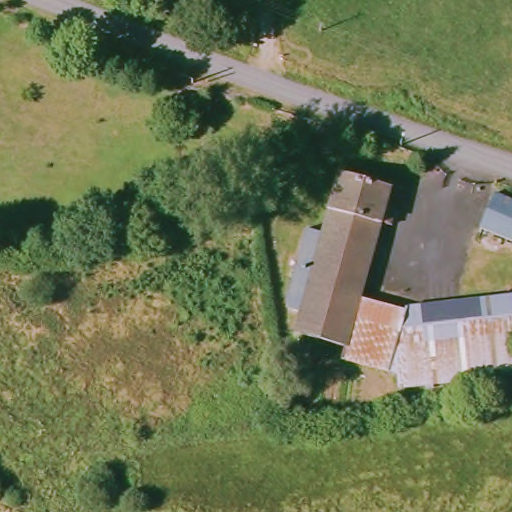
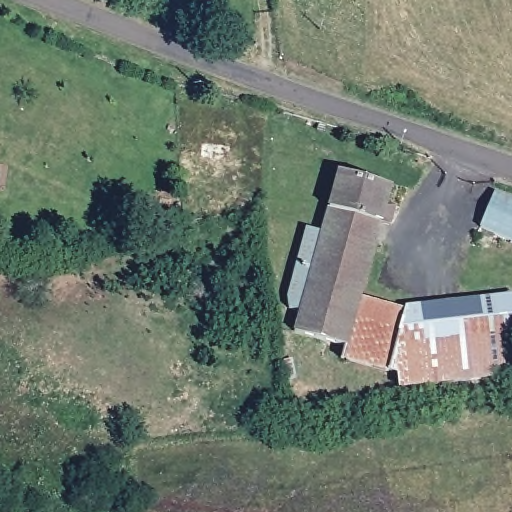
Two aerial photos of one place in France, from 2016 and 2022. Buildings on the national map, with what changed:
unchanged [(403,383),(347,368),(350,355),(300,342),(305,318),(292,315),(314,231),(330,236),(344,184),(395,198),(367,305),(407,317),(512,304),(512,385),(405,397),(403,383)]
unchanged [(498,201),(512,207),(512,248),(484,236),(498,201)]

